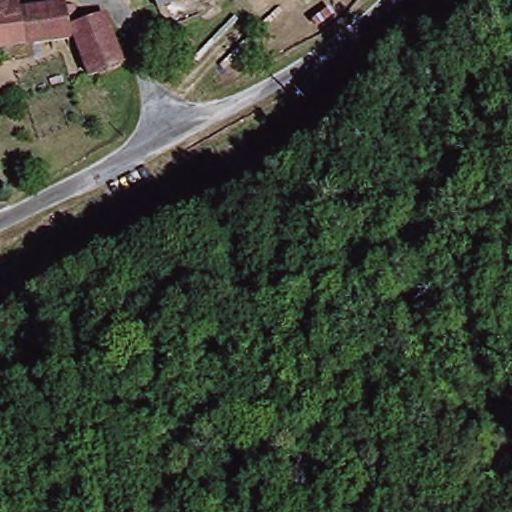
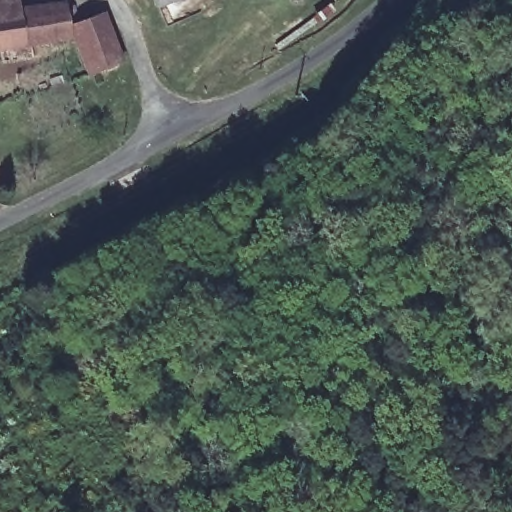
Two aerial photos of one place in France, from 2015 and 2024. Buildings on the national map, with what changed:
unchanged [(21,0),(22,10),(0,13),(0,0),(21,0)]
unchanged [(165,0),(175,0),(166,4),(165,0)]
unchanged [(0,49),(0,13),(22,10),(70,3),(74,27),(76,38),(0,49)]
unchanged [(108,14),(128,61),(93,76),(74,27),(108,14)]

